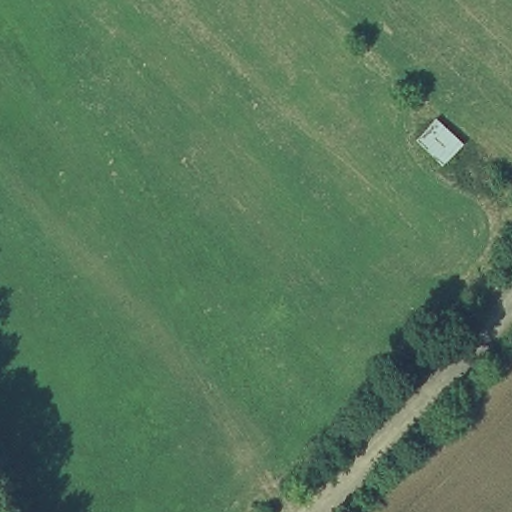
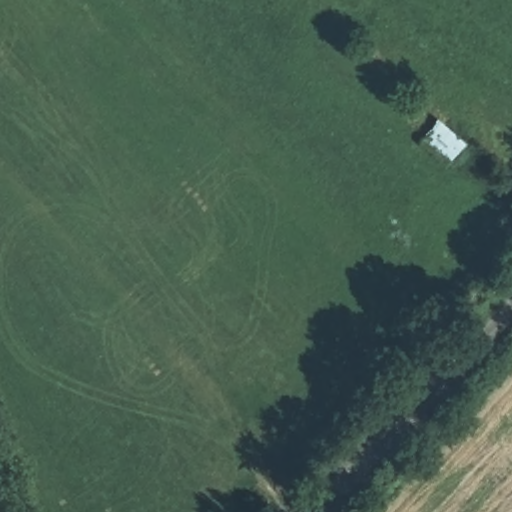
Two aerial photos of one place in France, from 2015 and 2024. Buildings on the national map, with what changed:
unchanged [(468,139),(443,166),(411,135),(437,116),(468,139)]

